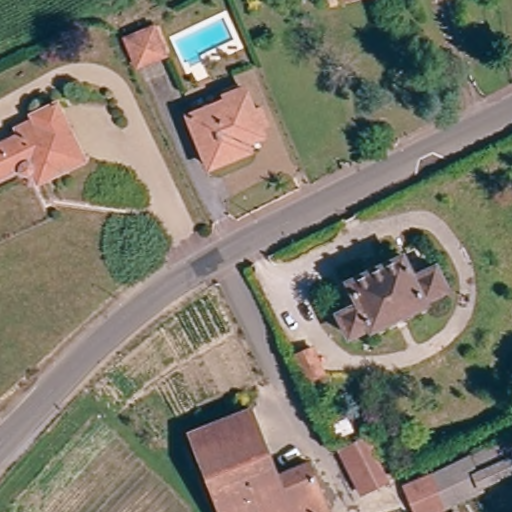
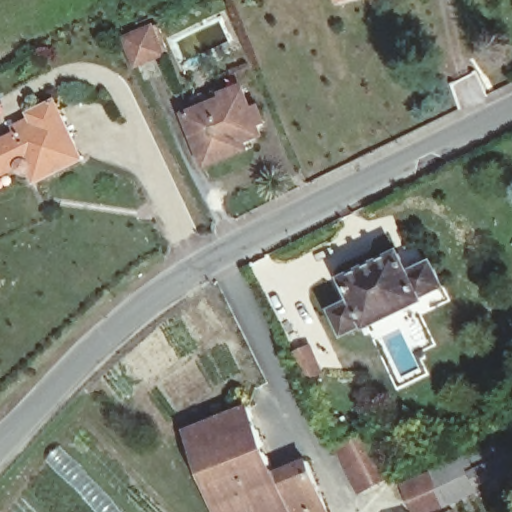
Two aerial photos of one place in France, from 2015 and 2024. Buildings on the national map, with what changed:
unchanged [(161,51),(138,62),(129,37),(151,26),(161,51)]
unchanged [(242,142),(245,149),(209,164),(188,115),(226,99),(224,94),(242,87),(252,108),(259,105),(264,117),(257,121),(262,134),(242,142)]
unchanged [(37,173),(30,157),(26,161),(23,161),(20,159),(17,155),(0,164),(0,138),(19,129),(15,119),(34,110),(32,106),(54,95),(82,152),(37,173)]
unchanged [(376,319),(373,315),(355,324),(345,302),(363,293),(353,273),(372,263),(368,253),(382,246),(386,256),(404,247),(415,268),(440,257),(451,279),(426,290),(428,294),(376,319)]
unchanged [(313,371),(302,345),(317,337),(331,363),(313,371)]
unchanged [(272,471),(305,460),(326,512),(220,512),(187,430),(246,406),(272,471)]
unchanged [(373,450),(369,453),(383,478),(358,491),(337,449),(365,433),(373,450)]
unchanged [(507,436),(512,434),(512,447),(507,436)]
unchanged [(471,465),(512,447),(512,465),(477,479),(471,465)]
unchanged [(420,512),(415,512),(411,501),(403,480),(466,452),(471,465),(477,479),(480,484),(475,487),(441,503),(420,512)]
unchanged [(407,463),(396,469),(392,461),(402,455),(407,463)]
unchanged [(452,512),(443,512),(450,508),(452,512)]

